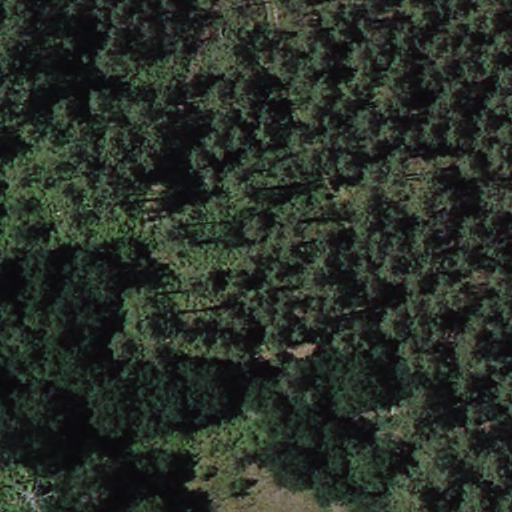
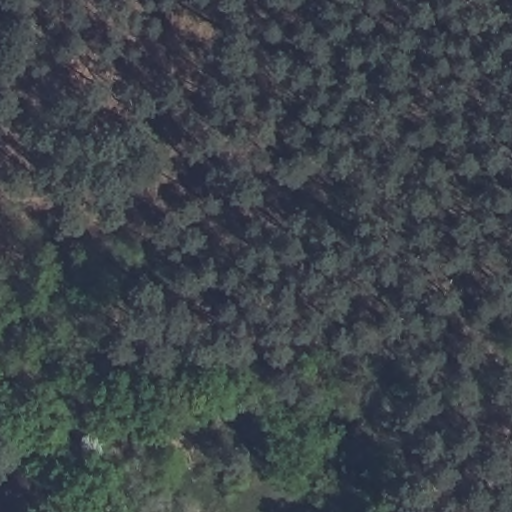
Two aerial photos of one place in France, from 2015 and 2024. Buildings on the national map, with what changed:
[]

